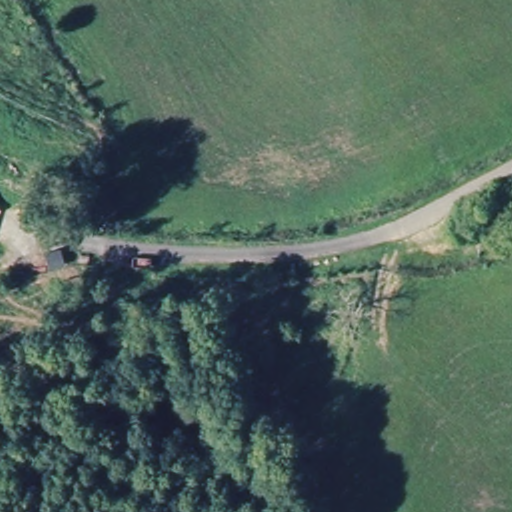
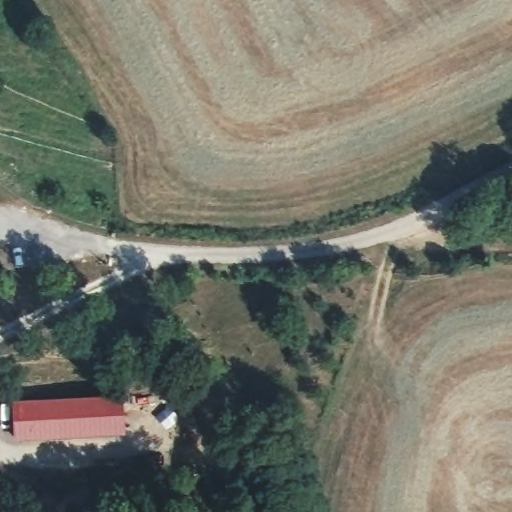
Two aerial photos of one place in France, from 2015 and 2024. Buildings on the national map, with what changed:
demolished [(9,216),(51,215),(51,238),(9,238),(9,216)]
new [(127,439),(15,445),(13,402),(124,398),(127,439)]

